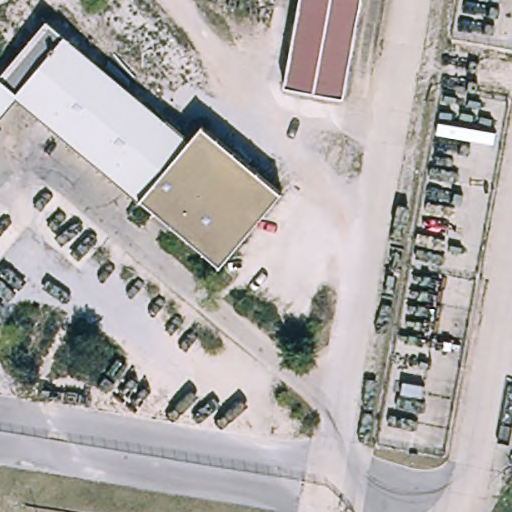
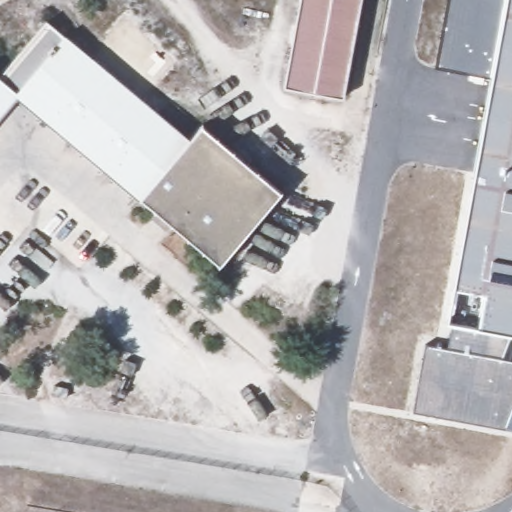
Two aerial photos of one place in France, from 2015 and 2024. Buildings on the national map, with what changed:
unchanged [(339,104),(288,91),(303,0),(359,0),(339,104)]
new [(510,335),(502,359),(512,360),(512,430),(413,412),(426,345),(444,348),(448,321),(493,74),(438,68),(449,0),(512,0),(512,335),(510,335)]
unchanged [(196,119),(281,191),(216,263),(16,97),(0,116),(0,61),(40,14),(181,136),(196,119)]

